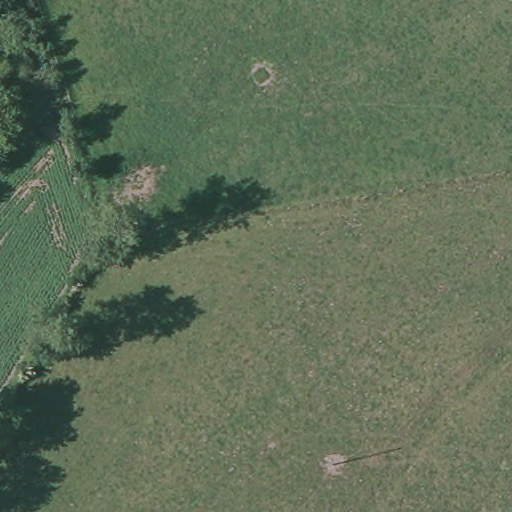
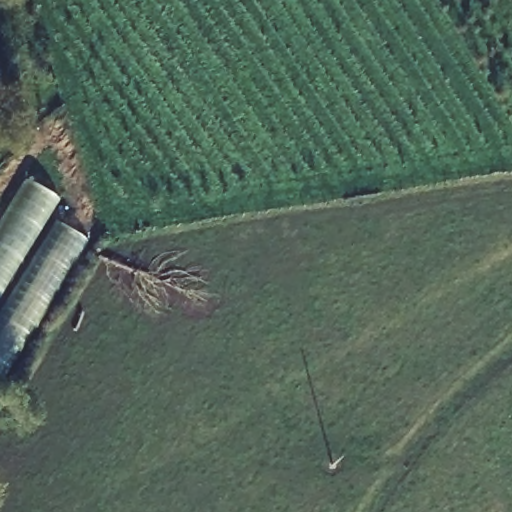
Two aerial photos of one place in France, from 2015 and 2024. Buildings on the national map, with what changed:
new [(24,180),(59,201),(50,218),(87,241),(0,384),(0,220),(24,180)]
demolished [(281,442),(272,463),(260,457),(268,438),(281,442)]

